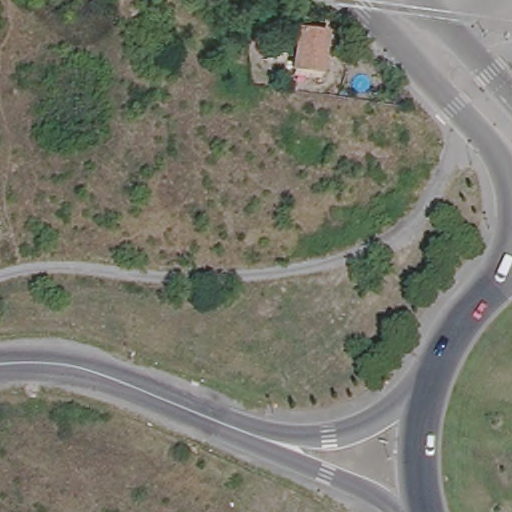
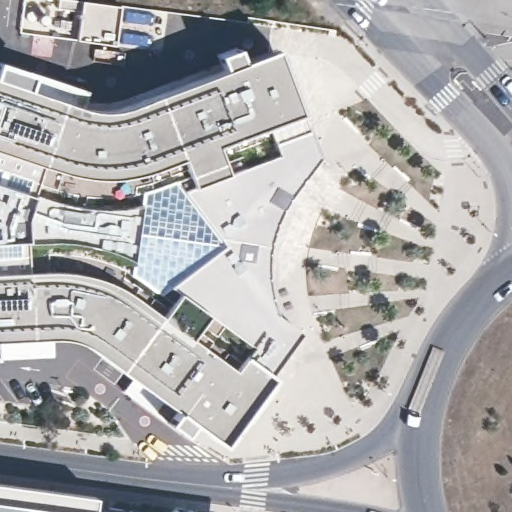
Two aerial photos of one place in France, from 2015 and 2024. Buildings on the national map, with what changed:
new [(74,0),(121,6),(116,46),(77,40),(81,12),(58,9),(59,0),(74,0)]
demolished [(327,38),(321,79),(295,75),(300,34),(327,38)]
new [(8,81),(13,71),(46,80),(41,92),(85,107),(101,110),(110,110),(125,105),(224,70),(219,55),(236,48),(242,61),(271,50),(312,159),(319,167),(292,196),(288,194),(279,207),(268,231),(261,261),(264,287),(270,311),(298,330),(224,430),(192,425),(187,429),(181,436),(152,415),(159,405),(87,356),(77,350),(73,348),(56,346),(0,349),(0,79),(8,81)]
new [(97,498),(93,512),(0,512),(0,484),(97,498)]

